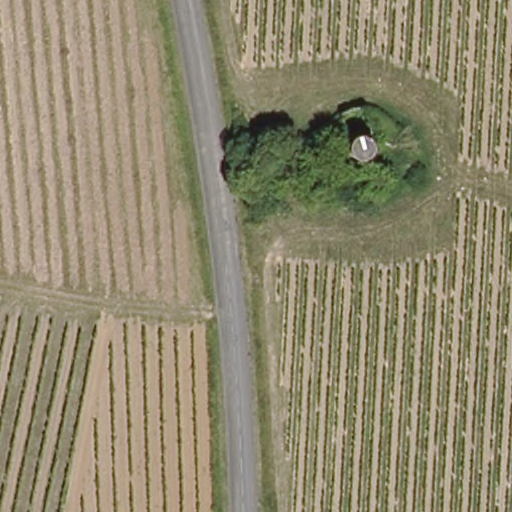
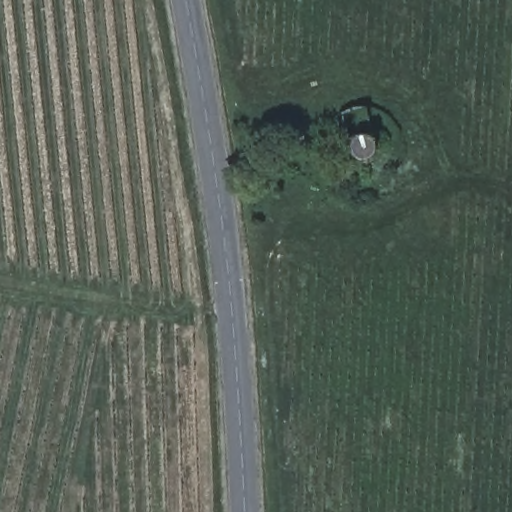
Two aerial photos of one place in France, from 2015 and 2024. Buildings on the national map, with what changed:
unchanged [(352,104),(363,104),(363,109),(370,117),(373,124),(373,135),(370,142),(363,147),(355,149),(348,147),(343,144),(338,139),(335,132),(336,121),(342,112),(352,108),(352,104)]

